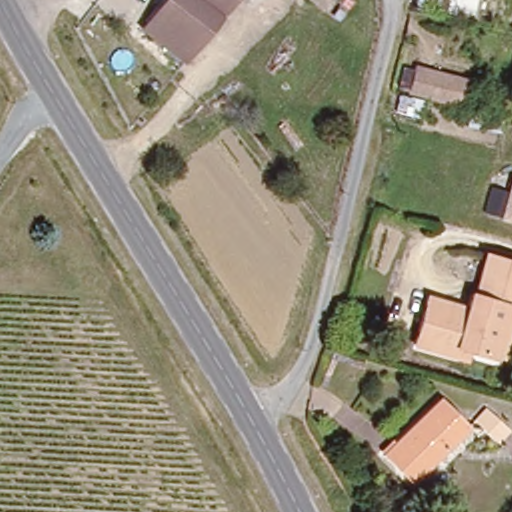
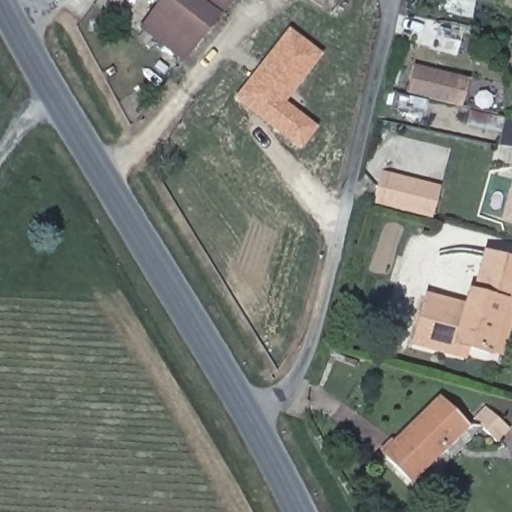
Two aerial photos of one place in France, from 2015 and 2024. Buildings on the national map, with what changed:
unchanged [(182,64),(137,30),(158,0),(229,0),(182,64)]
unchanged [(316,0),(326,0),(324,5),(316,0)]
new [(441,0),(473,0),(469,19),(439,11),(441,0)]
new [(234,99),(288,29),(322,55),(286,102),(316,127),(300,150),(234,99)]
unchanged [(474,82),(467,107),(411,92),(413,86),(401,84),(406,67),(417,69),(418,65),(474,82)]
new [(439,185),(430,218),(372,202),(381,170),(439,185)]
unchanged [(512,180),(512,221),(500,218),(512,180)]
unchanged [(465,345),(461,357),(413,344),(425,296),(466,305),(470,292),(475,293),(485,250),(512,257),(512,311),(500,355),(490,352),(465,345)]
unchanged [(384,440),(388,443),(435,397),(463,425),(409,481),(380,453),(375,449),(384,440)]
unchanged [(470,420),(483,406),(504,430),(492,442),(480,430),(470,420)]

